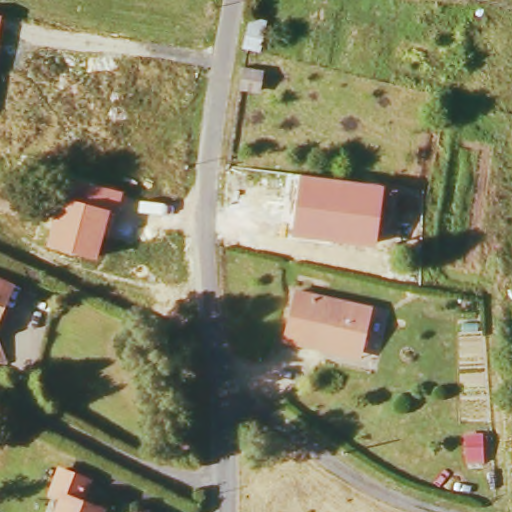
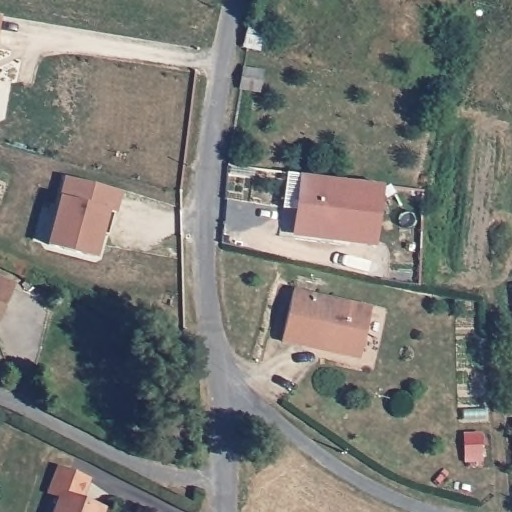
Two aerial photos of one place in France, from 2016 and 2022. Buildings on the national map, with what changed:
unchanged [(0,25),(0,16),(2,17),(0,25)]
unchanged [(231,77),(248,80),(246,100),(228,97),(231,77)]
unchanged [(382,187),(375,249),(291,238),(299,176),(382,187)]
unchanged [(46,247),(59,198),(65,179),(122,192),(117,213),(109,211),(97,262),(46,247)]
unchanged [(0,315),(0,278),(13,285),(0,315)]
unchanged [(306,351),(286,347),(297,294),(375,309),(366,356),(365,363),(306,351)]
unchanged [(77,509),(87,512),(55,512),(58,503),(48,498),(53,477),(83,490),(77,509)]

